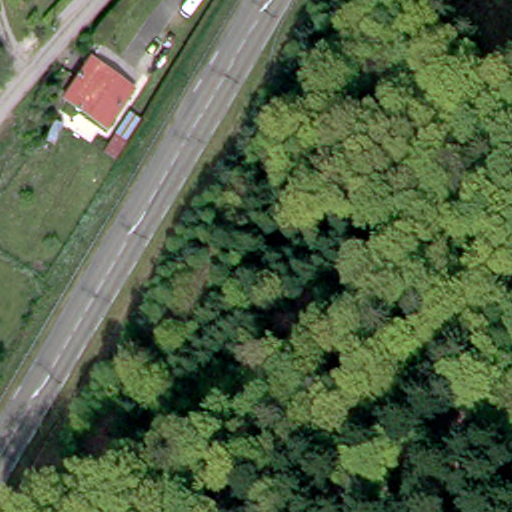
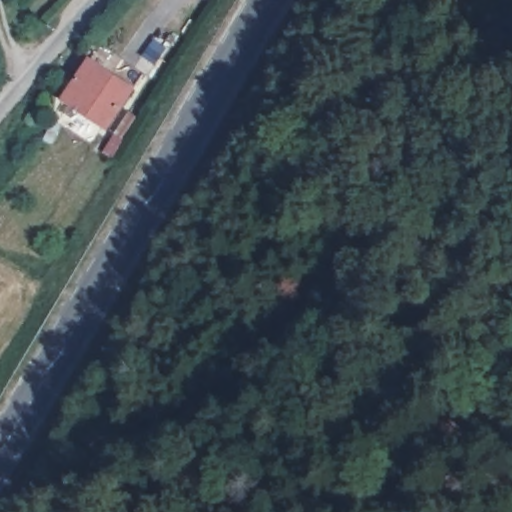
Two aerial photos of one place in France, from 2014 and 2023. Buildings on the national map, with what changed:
unchanged [(128,83),(103,122),(61,94),(86,56),(128,83)]
unchanged [(63,126),(55,144),(47,141),(54,122),(63,126)]

